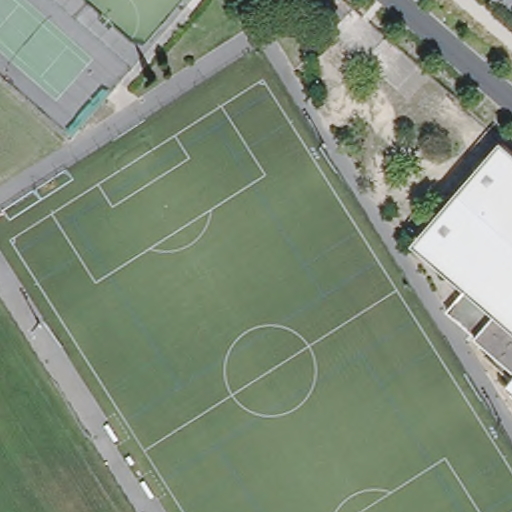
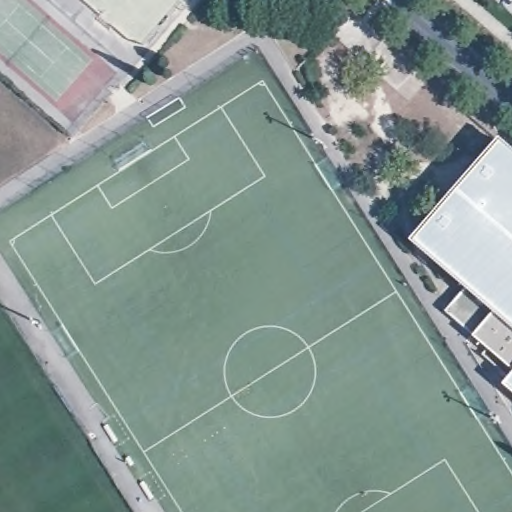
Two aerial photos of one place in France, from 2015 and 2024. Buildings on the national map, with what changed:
unchanged [(512,148),(512,364),(479,336),(500,310),(421,241),(505,142),(512,148)]
unchanged [(512,382),(512,388),(509,386),(512,382)]

